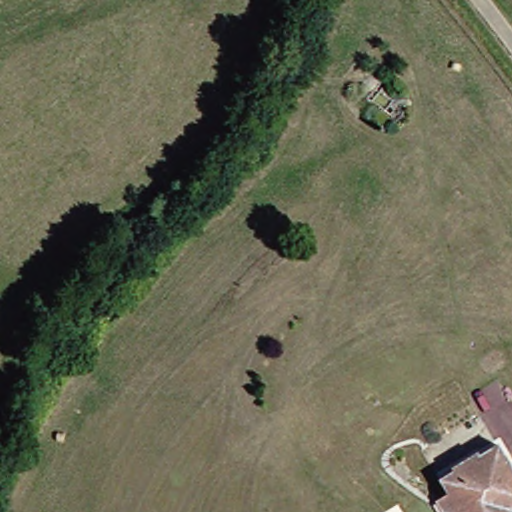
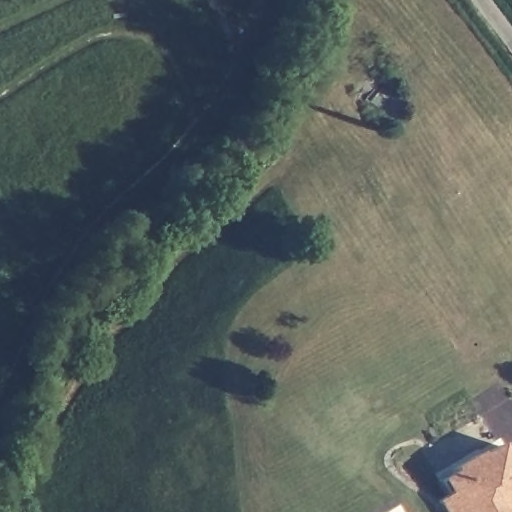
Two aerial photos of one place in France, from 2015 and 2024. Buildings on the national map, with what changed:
unchanged [(443,495),(435,480),(474,454),(477,458),(492,447),(512,477),(512,508),(510,509),(512,512),(440,512),(433,501),(443,495)]

